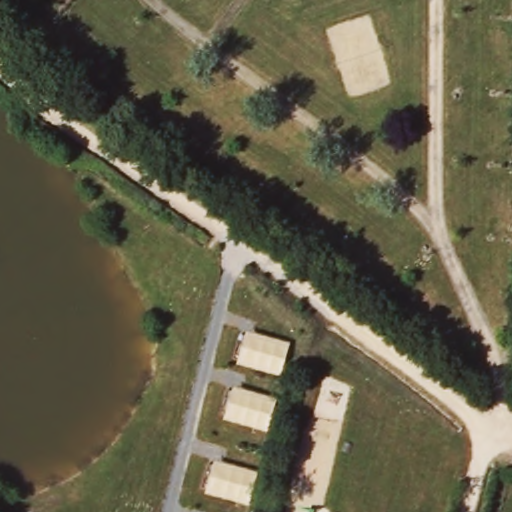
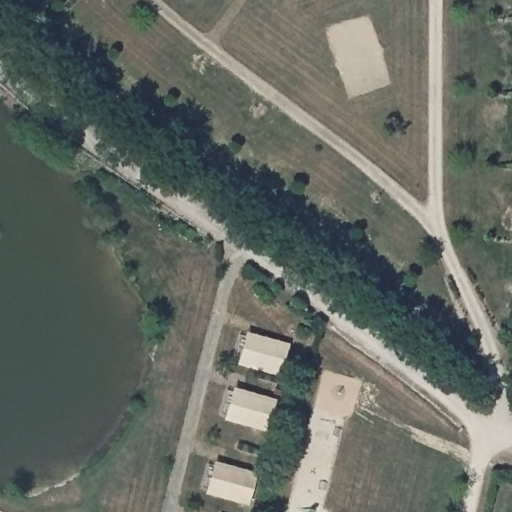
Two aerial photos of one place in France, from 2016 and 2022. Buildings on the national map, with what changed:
unchanged [(289,345),(279,379),(234,365),(247,332),(289,345)]
unchanged [(267,433),(224,419),(233,388),(276,399),(267,433)]
unchanged [(203,494),(213,459),(259,472),(249,508),(203,494)]

